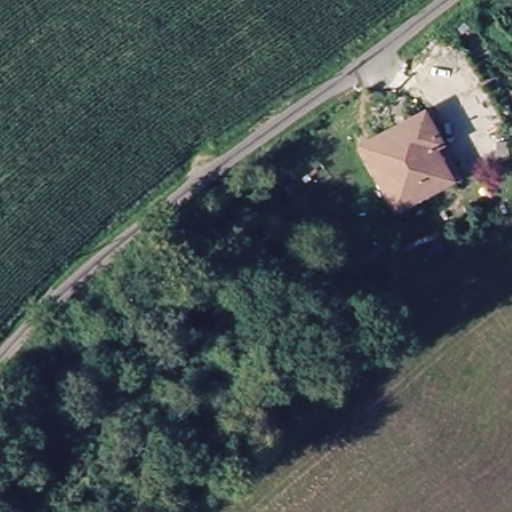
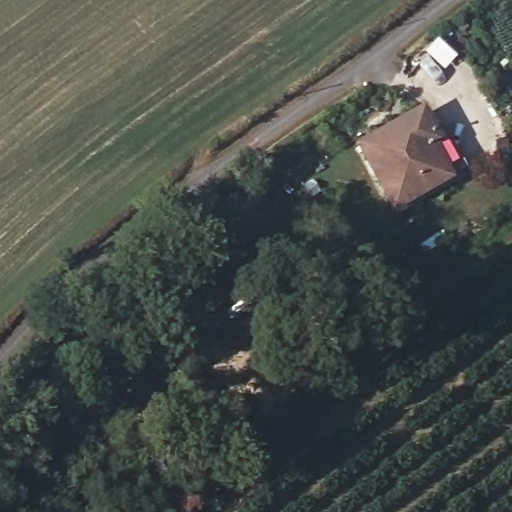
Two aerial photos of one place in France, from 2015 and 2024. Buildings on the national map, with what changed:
unchanged [(377,156),(370,145),(422,116),(439,145),(430,150),(446,180),(392,210),(365,163),(377,156)]

